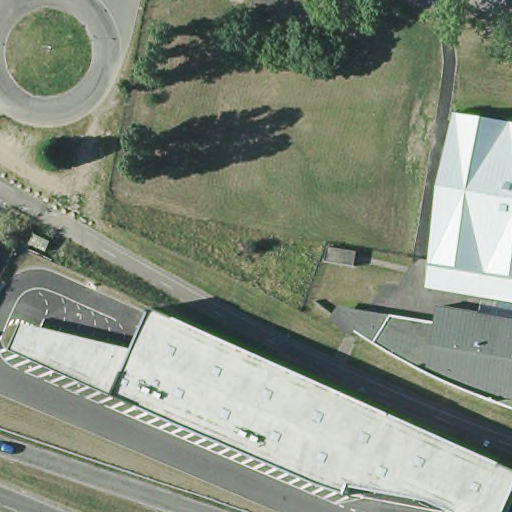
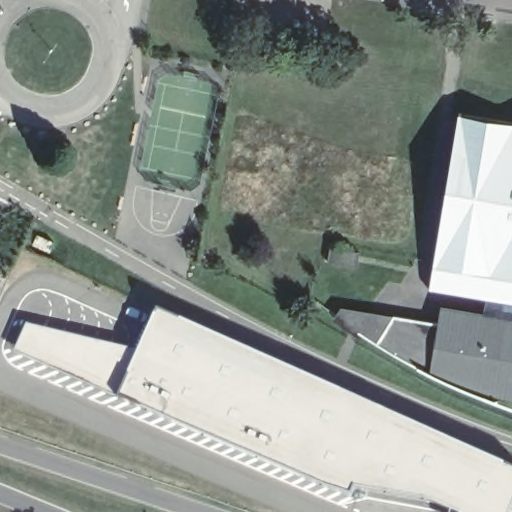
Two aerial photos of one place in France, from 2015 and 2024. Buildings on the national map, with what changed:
unchanged [(510,301),(492,298),(435,289),(464,115),(512,122),(512,301),(510,301)]
unchanged [(359,255),(357,270),(327,265),(329,251),(359,255)]
unchanged [(485,393),(485,396),(474,391),(462,387),(457,384),(448,380),(445,378),(434,373),(422,368),(414,363),(409,361),(403,357),(397,355),(392,352),(384,347),(382,346),(382,345),(399,317),(444,324),(446,308),(507,317),(510,301),(512,301),(512,398),(485,393)]
unchanged [(509,512),(449,512),(450,511),(427,502),(355,487),(351,497),(325,487),(120,397),(15,352),(26,326),(137,351),(157,308),(512,469),(512,505),(509,512)]
unchanged [(399,317),(382,345),(379,343),(371,338),(366,336),(357,330),(350,325),(342,320),(348,310),(399,317)]

